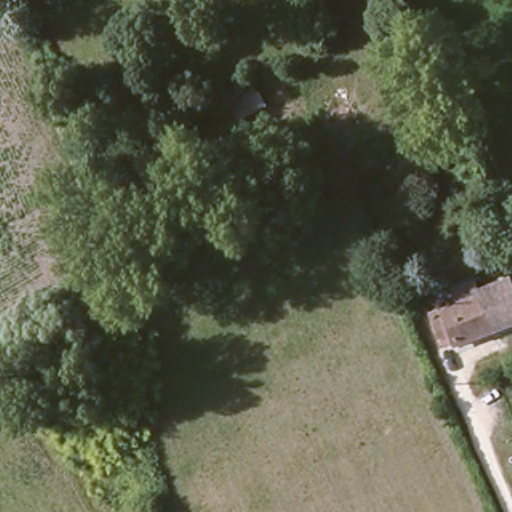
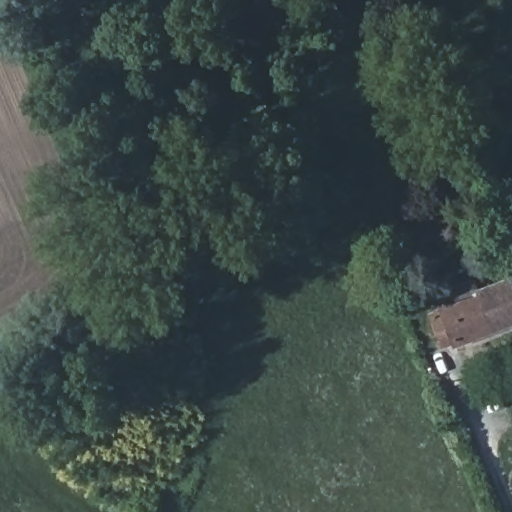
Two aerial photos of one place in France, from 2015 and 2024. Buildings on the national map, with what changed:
unchanged [(172,159),(157,135),(252,80),(268,108),(172,159)]
unchanged [(512,283),(512,322),(494,328),(479,283),(508,274),(512,283)]
unchanged [(476,275),(479,283),(494,328),(496,335),(449,353),(434,311),(453,303),(447,285),(476,275)]

